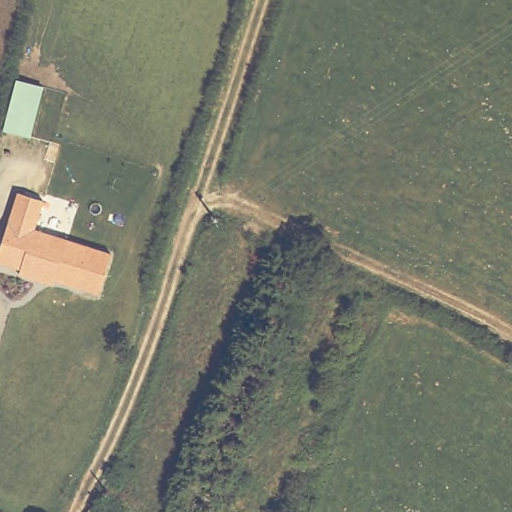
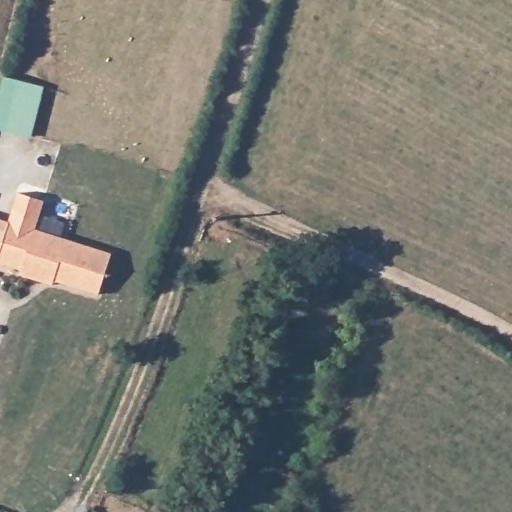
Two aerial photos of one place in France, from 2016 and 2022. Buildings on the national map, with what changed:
unchanged [(46,87),(32,140),(2,133),(15,80),(46,87)]
unchanged [(37,231),(112,253),(100,296),(52,282),(50,290),(18,280),(19,272),(0,268),(0,251),(17,191),(46,200),(37,231)]
unchanged [(90,505),(97,507),(107,512),(87,512),(90,505)]

